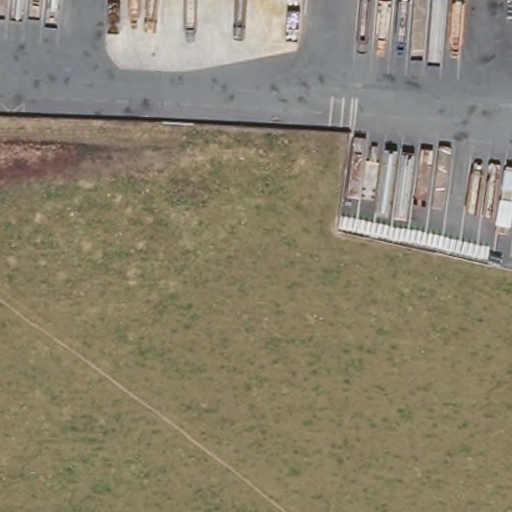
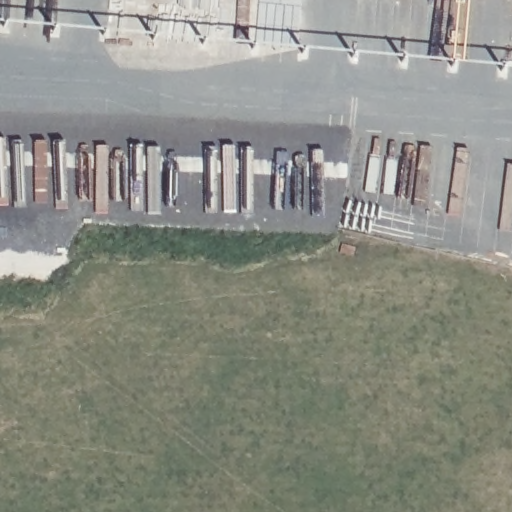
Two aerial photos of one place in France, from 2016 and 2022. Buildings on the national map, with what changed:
[]

